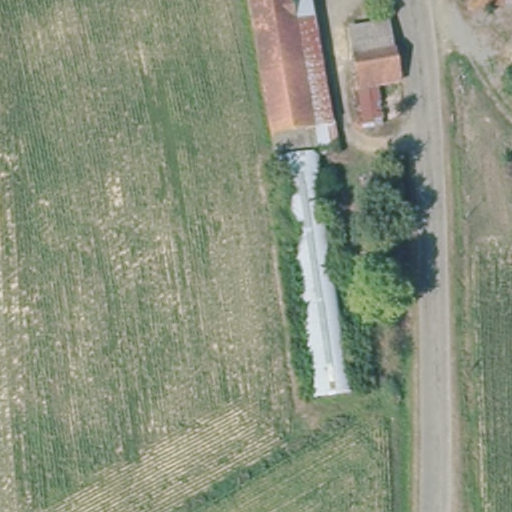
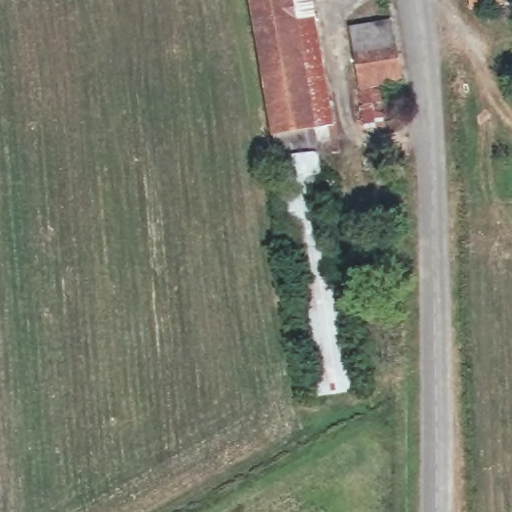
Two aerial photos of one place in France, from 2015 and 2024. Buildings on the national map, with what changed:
unchanged [(326,90),(333,128),(312,131),(315,156),(315,158),(277,164),(247,0),(291,0),(308,94),(326,90)]
unchanged [(291,0),(313,0),(326,90),(308,94),(291,0)]
unchanged [(402,82),(375,88),(382,121),(360,125),(350,51),(376,49),(370,16),(392,20),(402,82)]
unchanged [(354,392),(320,393),(277,164),(315,158),(354,392)]

